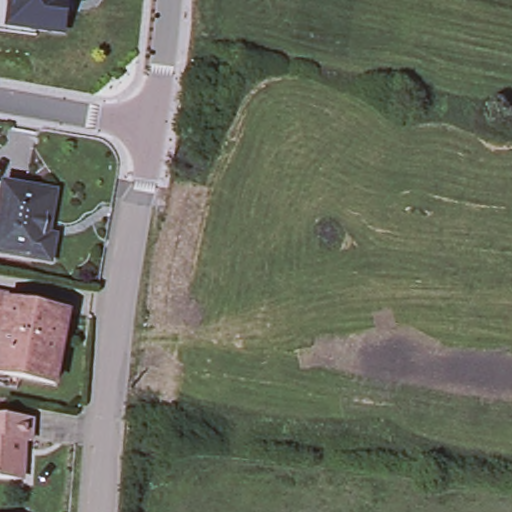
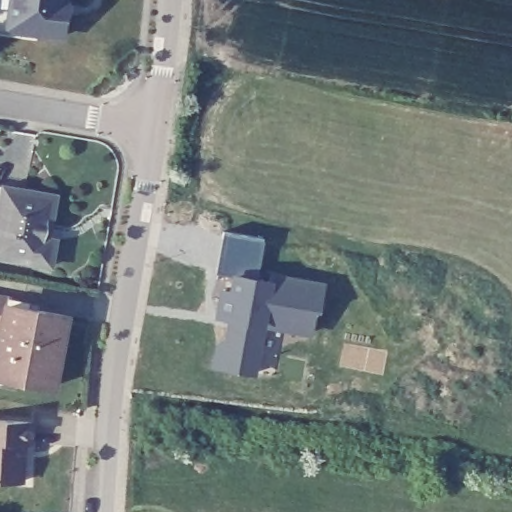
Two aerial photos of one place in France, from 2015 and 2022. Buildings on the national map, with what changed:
unchanged [(15,22),(17,0),(73,0),(70,29),(15,22)]
unchanged [(47,237),(59,239),(54,262),(0,253),(0,183),(4,184),(55,194),(47,237)]
new [(217,338),(225,334),(230,317),(215,314),(220,285),(230,288),(232,274),(217,270),(225,230),(266,238),(259,276),(267,278),(269,269),(327,280),(322,309),(317,309),(313,334),(266,326),(259,374),(212,366),(217,338)]
unchanged [(17,293),(15,302),(33,304),(34,302),(72,309),(60,360),(0,349),(10,324),(0,323),(0,290),(17,293)]
unchanged [(60,360),(53,388),(5,381),(0,380),(0,349),(60,360)]
unchanged [(30,421),(28,443),(22,443),(21,477),(20,479),(0,479),(0,418),(30,421)]

